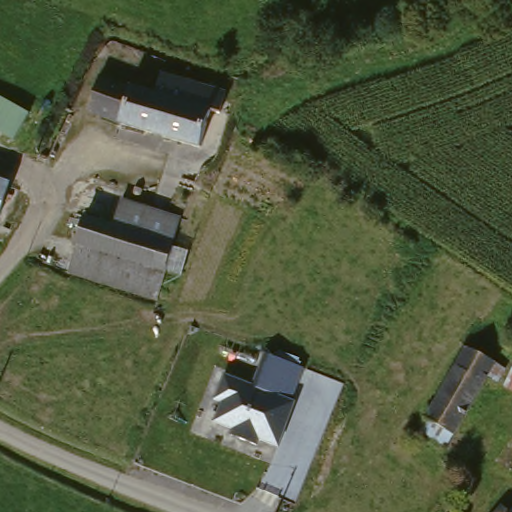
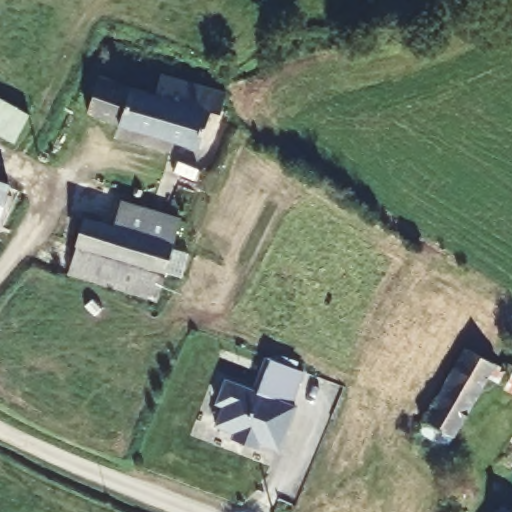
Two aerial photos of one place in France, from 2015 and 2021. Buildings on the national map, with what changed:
unchanged [(231,88),(225,109),(216,107),(205,144),(124,119),(93,107),(105,71),(135,82),(160,90),(166,69),(231,88)]
unchanged [(0,136),(0,100),(24,113),(11,137),(9,140),(0,136)]
unchanged [(0,224),(0,181),(13,185),(0,224)]
unchanged [(118,222),(126,197),(185,215),(161,295),(73,267),(78,250),(89,214),(118,222)]
unchanged [(511,364),(503,377),(494,371),(452,442),(424,425),(431,413),(430,413),(472,342),(502,358),(502,359),(511,364)]
unchanged [(234,425),(215,418),(224,399),(217,397),(226,373),(254,383),(266,350),(304,364),(292,397),(296,399),(280,442),(261,435),(259,441),(240,433),(232,430),(234,425)]
unchanged [(507,505),(512,509),(512,512),(501,512),(507,505)]

